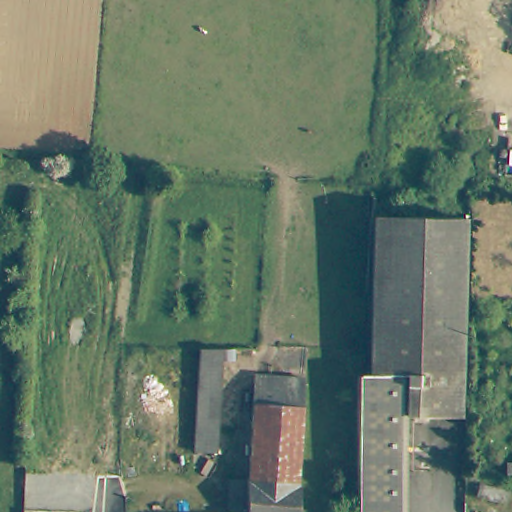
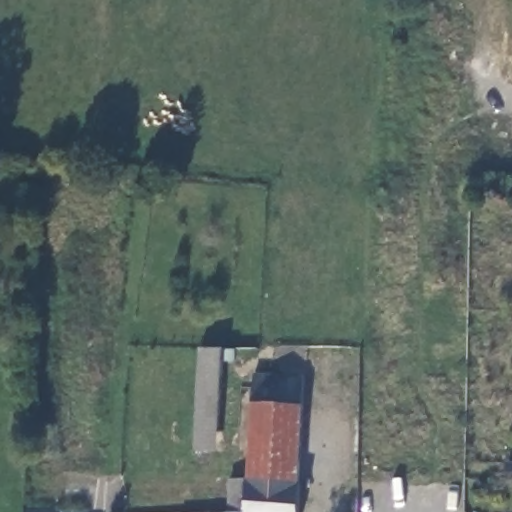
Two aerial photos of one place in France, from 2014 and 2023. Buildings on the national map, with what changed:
demolished [(462,221),(461,321),(461,418),(402,418),(402,499),(358,499),(358,405),(357,380),(367,380),(369,281),(370,221),(462,221)]
demolished [(265,293),(265,303),(253,304),(254,293),(265,293)]
demolished [(361,338),(357,380),(336,376),(344,295),(365,295),(361,338)]
unchanged [(218,430),(207,456),(194,456),(199,354),(223,354),(218,430)]
unchanged [(228,478),(246,478),(247,441),(254,376),(305,383),(296,486),(300,486),(299,512),(200,512),(229,510),(228,478)]
unchanged [(504,478),(504,467),(512,468),(512,478),(504,478)]

